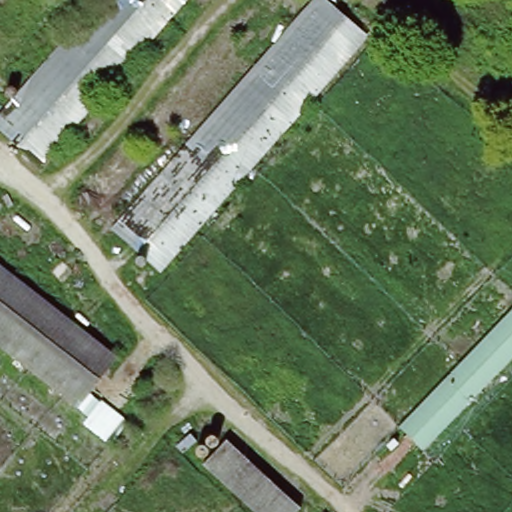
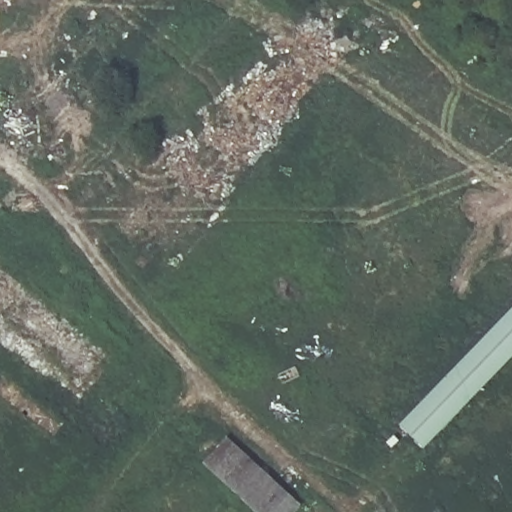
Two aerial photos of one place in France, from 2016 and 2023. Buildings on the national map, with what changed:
demolished [(99,0),(183,0),(42,162),(0,125),(0,113),(99,0)]
demolished [(309,0),(319,0),(362,37),(157,272),(110,231),(309,0)]
demolished [(92,336),(49,383),(0,345),(0,265),(92,336)]
unchanged [(512,356),(422,451),(397,428),(512,307),(512,356)]
demolished [(92,336),(114,354),(75,403),(49,383),(92,336)]
demolished [(462,427),(483,451),(438,495),(415,474),(462,427)]
unchanged [(291,512),(252,512),(200,465),(223,437),(297,505),(291,512)]

